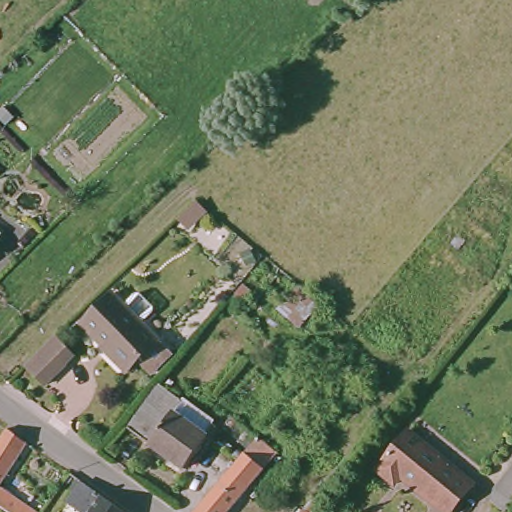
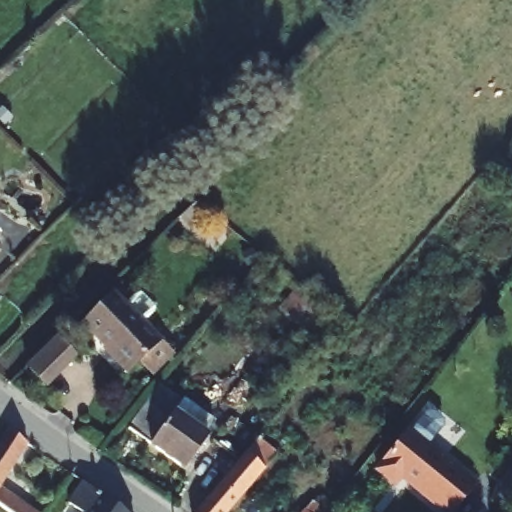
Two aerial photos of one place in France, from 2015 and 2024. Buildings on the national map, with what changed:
unchanged [(162,341),(131,373),(110,355),(114,352),(85,324),(114,293),(162,341)]
unchanged [(54,337),(72,355),(64,362),(67,366),(46,386),(25,365),(54,337)]
unchanged [(211,425),(204,436),(207,439),(182,472),(127,429),(159,386),(211,425)]
unchanged [(431,512),(399,483),(386,498),(367,481),(412,428),(475,483),(453,512),(431,512)]
unchanged [(25,445),(0,485),(0,438),(5,430),(25,445)]
unchanged [(203,512),(254,452),(265,438),(285,455),(235,512),(203,512)]
unchanged [(495,489),(497,487),(512,468),(512,502),(495,489)]
unchanged [(80,512),(72,505),(87,485),(126,512),(80,512)]
unchanged [(0,490),(31,512),(2,512),(0,510),(0,490)]
unchanged [(322,508),(320,512),(300,512),(310,498),(322,508)]

